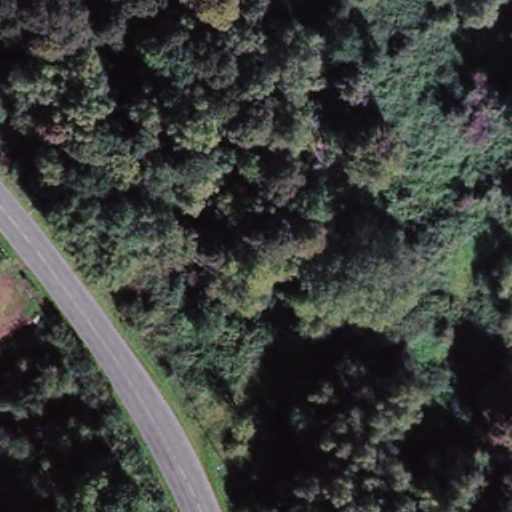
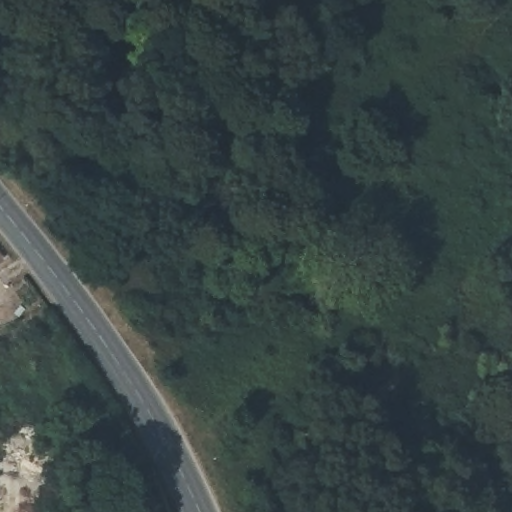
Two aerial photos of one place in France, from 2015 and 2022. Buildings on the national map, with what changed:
[]

